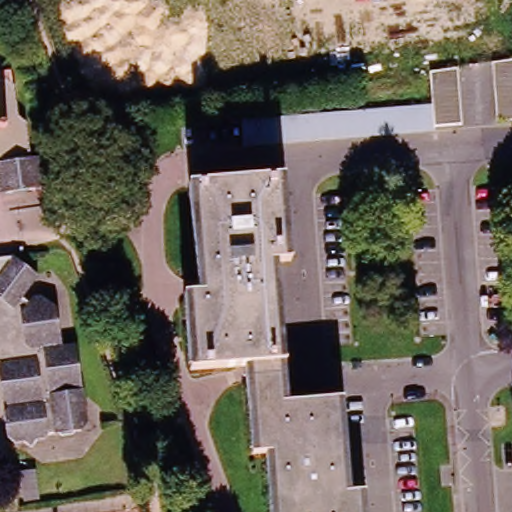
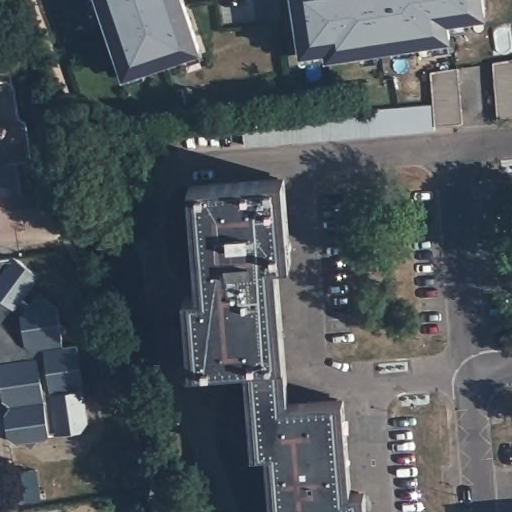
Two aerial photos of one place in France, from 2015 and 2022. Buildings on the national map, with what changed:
new [(125,74),(106,17),(96,20),(90,3),(89,0),(185,0),(201,49),(204,56),(185,63),(182,55),(145,68),(147,75),(128,82),(125,74)]
new [(484,0),(486,14),(448,20),(451,37),(415,43),(416,53),(400,56),(399,45),(330,55),(305,59),(303,52),(295,0),(484,0)]
unchanged [(497,120),(495,100),(491,61),(512,60),(512,119),(497,120)]
unchanged [(426,66),(452,62),(456,98),(458,119),(431,121),(431,125),(401,128),(290,138),(264,140),(241,142),(239,117),(430,100),(426,66)]
unchanged [(7,78),(14,84),(18,114),(25,119),(30,157),(37,162),(40,179),(35,186),(8,191),(2,187),(0,173),(0,71),(6,70),(7,78)]
unchanged [(359,489),(361,512),(275,512),(268,449),(255,450),(247,363),(192,368),(186,293),(202,291),(193,181),(275,174),(282,257),(270,259),(281,399),(337,395),(345,490),(359,489)]
unchanged [(35,272),(21,291),(28,296),(31,292),(42,291),(57,302),(62,340),(75,338),(81,378),(76,383),(82,387),(87,420),(82,427),(76,427),(75,430),(65,431),(63,430),(46,432),(43,436),(36,437),(30,443),(24,439),(15,440),(8,435),(0,383),(0,254),(10,252),(35,272)]

